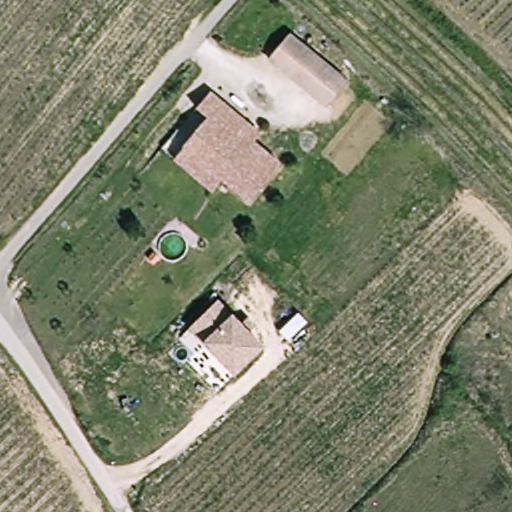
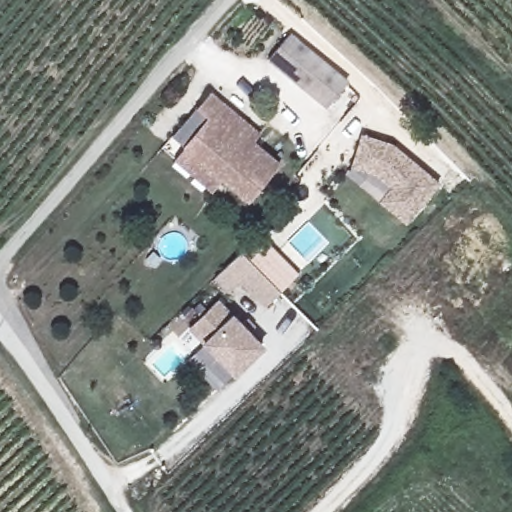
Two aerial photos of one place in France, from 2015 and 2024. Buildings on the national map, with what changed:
unchanged [(290,34),(349,83),(330,106),(271,57),(290,34)]
unchanged [(176,161),(186,151),(211,121),(199,112),(213,96),(251,127),(263,138),(256,146),(282,168),(251,205),(225,182),(224,183),(215,194),(176,161)]
new [(362,134),(393,144),(440,185),(405,225),(379,202),(391,189),(373,175),(350,169),(362,134)]
new [(241,252),(261,235),(299,273),(280,293),(266,308),(240,282),(229,294),(214,279),(241,252)]
demolished [(291,301),(272,322),(226,278),(245,257),(291,301)]
unchanged [(264,347),(236,375),(205,345),(190,330),(195,325),(218,302),(264,347)]

